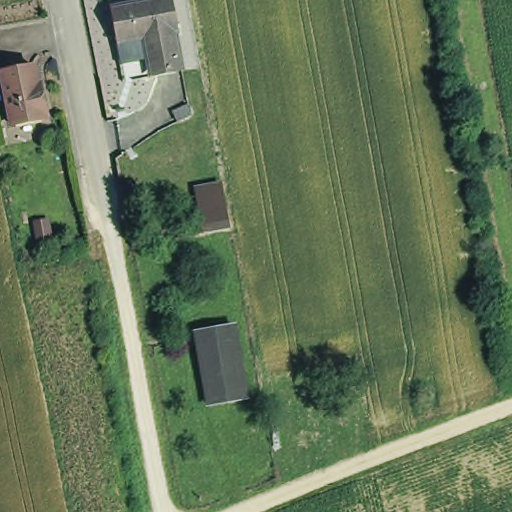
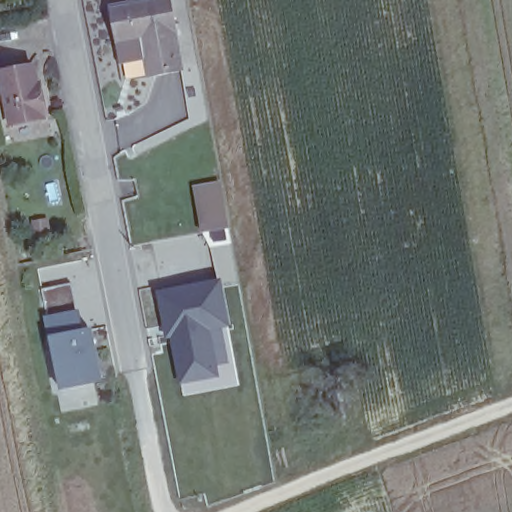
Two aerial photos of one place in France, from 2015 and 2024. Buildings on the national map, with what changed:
unchanged [(183,64),(157,69),(150,31),(119,37),(112,2),(123,0),(173,0),(177,26),(176,27),(183,64)]
unchanged [(0,71),(30,65),(34,83),(36,82),(42,114),(40,114),(40,116),(6,123),(0,94),(0,71)]
unchanged [(192,189),(217,184),(225,228),(200,232),(192,189)]
new [(167,338),(162,340),(153,293),(221,280),(229,326),(210,328),(219,376),(177,385),(167,338)]
new [(76,310),(45,314),(42,290),(70,285),(76,310)]
new [(79,330),(89,329),(99,383),(57,392),(40,315),(76,310),(79,330)]
demolished [(197,326),(233,320),(246,392),(209,399),(197,326)]

